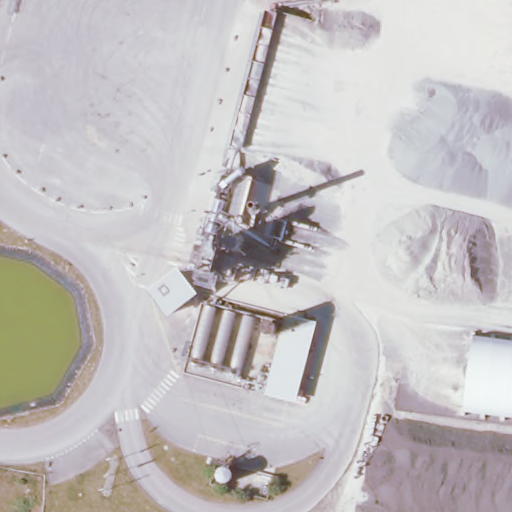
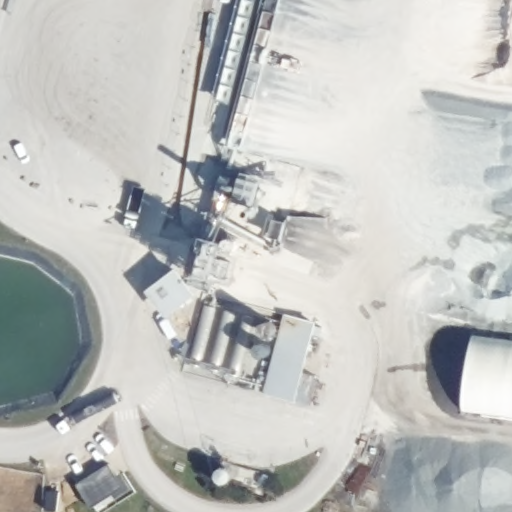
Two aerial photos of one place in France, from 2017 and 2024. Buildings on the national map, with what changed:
unchanged [(203,245),(229,252),(221,282),(196,276),(203,245)]
unchanged [(148,289),(172,271),(190,295),(166,313),(148,289)]
unchanged [(281,315),(305,320),(283,400),(261,395),(281,315)]
unchanged [(512,342),(512,418),(464,412),(471,336),(512,342)]
new [(123,473),(136,491),(104,512),(99,512),(99,511),(96,507),(93,509),(77,485),(109,463),(117,476),(123,473)]

